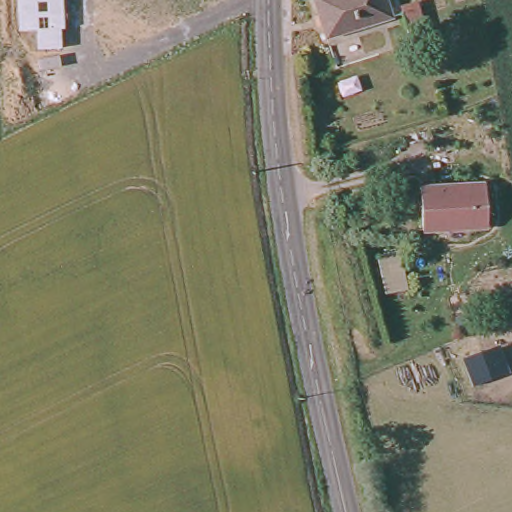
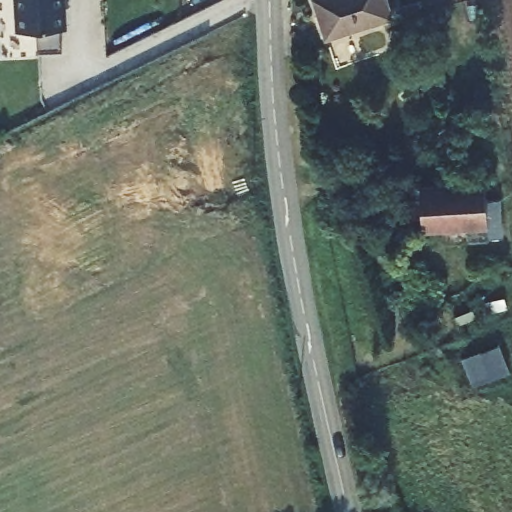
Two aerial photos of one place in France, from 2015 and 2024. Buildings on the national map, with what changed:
unchanged [(63,0),(64,31),(61,31),(60,49),(39,50),(40,31),(22,31),(21,32),(19,0),(63,0)]
unchanged [(385,0),(391,19),(324,42),(309,3),(317,0),(385,0)]
unchanged [(398,11),(415,4),(427,41),(409,46),(398,11)]
unchanged [(482,184),(484,226),(419,229),(417,186),(482,184)]
new [(499,346),(510,373),(474,387),(463,360),(499,346)]

